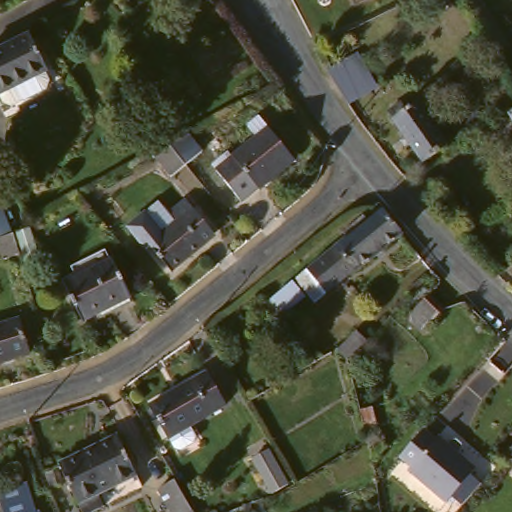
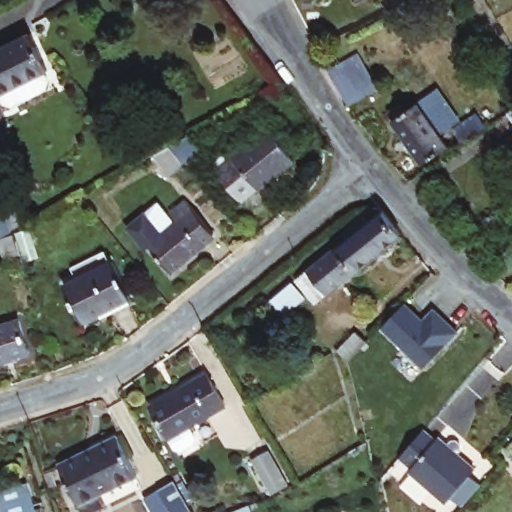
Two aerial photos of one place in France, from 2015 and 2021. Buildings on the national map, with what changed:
unchanged [(361,1),(360,0),(362,0),(361,1)]
demolished [(453,0),(474,0),(457,8),(453,0)]
unchanged [(29,33),(48,68),(0,95),(0,50),(29,33)]
unchanged [(382,87),(348,106),(329,71),(361,53),(382,87)]
unchanged [(445,136),(417,153),(390,110),(417,94),(445,136)]
unchanged [(176,147),(192,139),(212,129),(222,147),(205,159),(201,154),(187,164),(176,147)]
unchanged [(277,132),(302,168),(261,195),(259,192),(245,201),(223,166),(277,132)]
unchanged [(4,185),(24,255),(6,260),(1,242),(0,242),(0,185),(4,185)]
unchanged [(197,208),(215,233),(204,240),(207,246),(172,270),(152,239),(197,208)]
unchanged [(407,245),(309,302),(295,277),(388,221),(407,245)]
unchanged [(116,262),(130,298),(76,322),(62,287),(116,262)]
unchanged [(289,280),(298,296),(276,309),(272,304),(262,311),(256,300),(289,280)]
demolished [(443,300),(455,317),(432,333),(421,317),(443,300)]
new [(458,331),(425,369),(382,329),(405,303),(422,319),(433,309),(458,331)]
unchanged [(21,319),(33,355),(0,367),(0,327),(21,319)]
unchanged [(352,332),(360,343),(351,349),(340,357),(333,346),(352,332)]
unchanged [(205,371),(225,403),(170,437),(151,405),(205,371)]
unchanged [(419,430),(476,475),(440,512),(438,512),(390,466),(419,430)]
unchanged [(105,494),(111,512),(110,512),(83,512),(64,462),(122,435),(142,476),(105,494)]
unchanged [(282,437),(303,471),(286,479),(266,447),(282,437)]
unchanged [(512,445),(512,460),(504,455),(512,445)]
unchanged [(180,476),(197,512),(172,512),(160,487),(180,476)]

